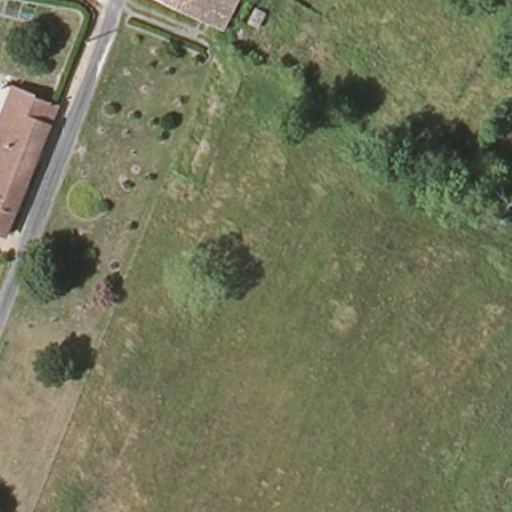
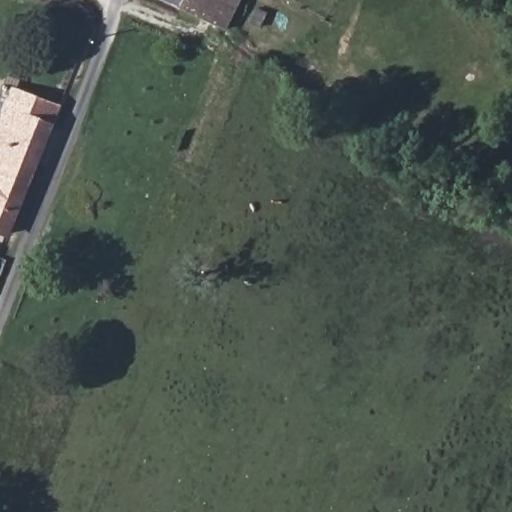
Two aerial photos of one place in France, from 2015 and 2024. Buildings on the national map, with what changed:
unchanged [(169,0),(183,0),(181,6),(169,0)]
unchanged [(181,6),(183,0),(241,0),(227,29),(181,6)]
unchanged [(0,87),(4,77),(15,80),(62,102),(57,120),(11,240),(0,236),(0,87)]

